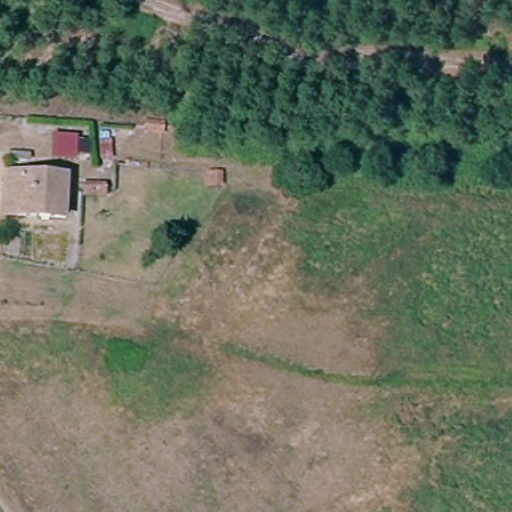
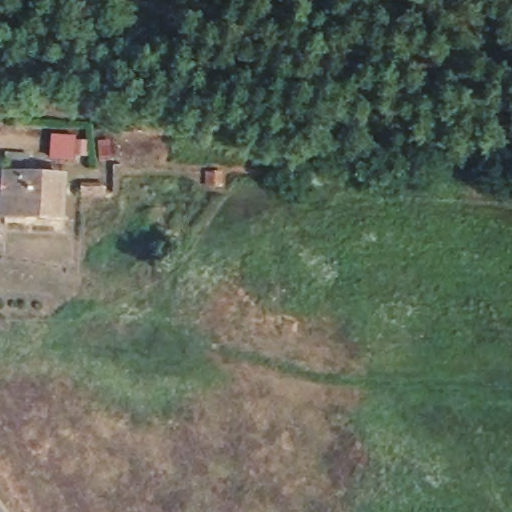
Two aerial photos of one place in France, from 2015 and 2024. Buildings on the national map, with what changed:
unchanged [(67,175),(64,221),(0,221),(0,185),(1,171),(67,175)]

